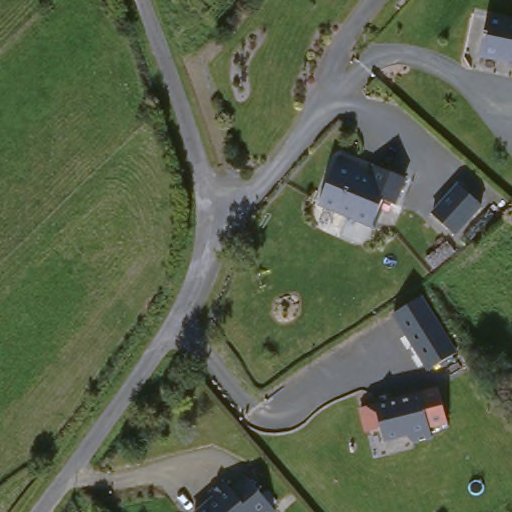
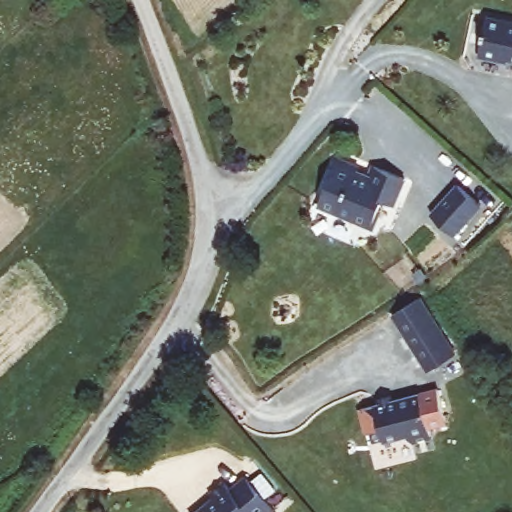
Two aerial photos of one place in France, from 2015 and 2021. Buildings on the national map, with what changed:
unchanged [(512,30),(512,68),(494,64),(494,66),(472,61),(481,23),(512,30)]
unchanged [(336,159),(356,167),(354,172),(366,177),(370,166),(401,179),(390,205),(379,201),(376,209),(378,210),(371,228),(318,204),(336,159)]
unchanged [(454,235),(430,212),(456,182),(483,205),(454,235)]
unchanged [(427,370),(391,315),(420,296),(455,351),(427,370)]
unchanged [(425,390),(436,422),(419,428),(423,440),(405,445),(398,438),(378,445),(373,433),(359,437),(351,415),(425,390)]
unchanged [(265,512),(199,512),(207,505),(202,499),(216,486),(223,495),(238,481),(265,512)]

